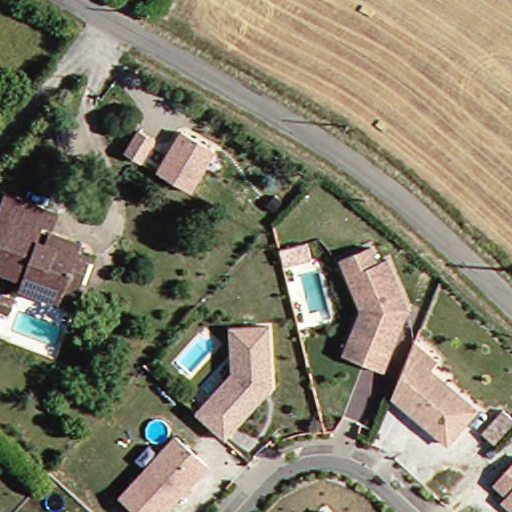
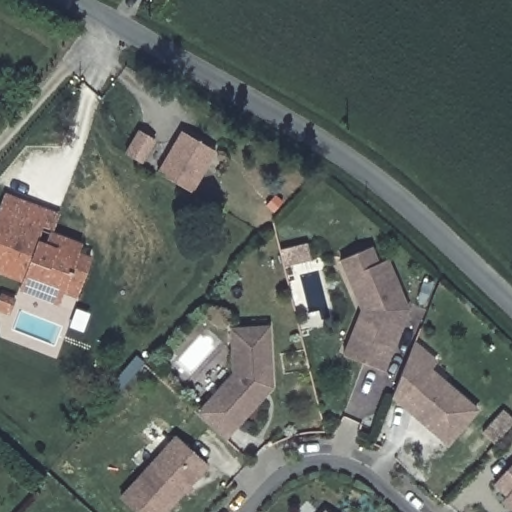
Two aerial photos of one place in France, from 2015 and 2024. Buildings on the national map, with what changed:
unchanged [(119,152),(132,127),(148,136),(134,160),(119,152)]
unchanged [(156,175),(180,132),(213,151),(190,193),(156,175)]
unchanged [(13,291),(17,280),(0,274),(0,194),(38,210),(53,214),(47,235),(77,244),(75,254),(88,258),(73,298),(60,292),(58,296),(55,308),(13,291)]
unchanged [(347,367),(349,353),(358,305),(340,253),(374,241),(378,260),(388,257),(406,307),(392,362),(388,375),(347,367)]
unchanged [(225,439),(196,413),(233,372),(235,329),(275,332),(266,392),(233,430),(225,439)]
unchanged [(444,445),(388,397),(405,353),(409,346),(432,363),(425,372),(473,412),(444,445)]
unchanged [(477,433),(495,408),(509,420),(489,442),(477,433)]
unchanged [(202,465),(161,512),(135,512),(118,498),(171,437),(202,465)]
unchanged [(506,496),(494,485),(512,462),(512,506),(504,499),(506,496)]
unchanged [(328,512),(325,512),(326,511),(328,512)]

